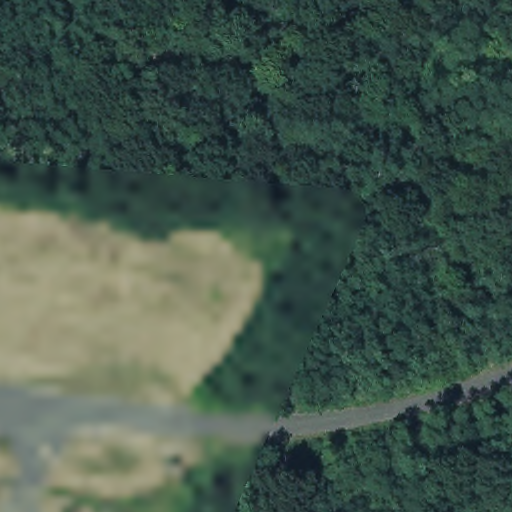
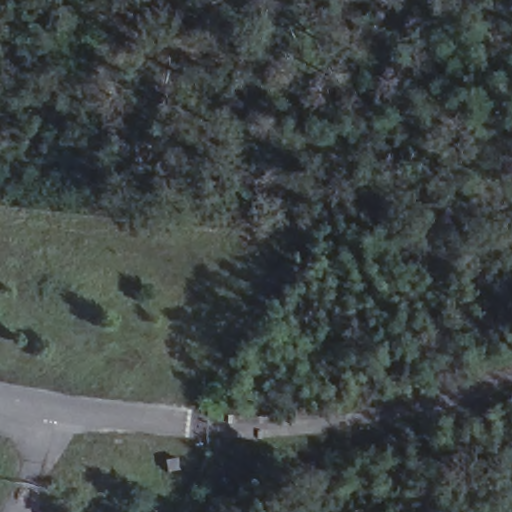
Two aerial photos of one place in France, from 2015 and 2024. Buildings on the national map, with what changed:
[]

